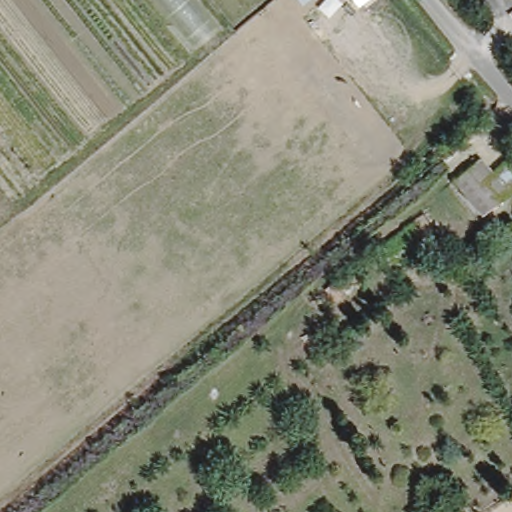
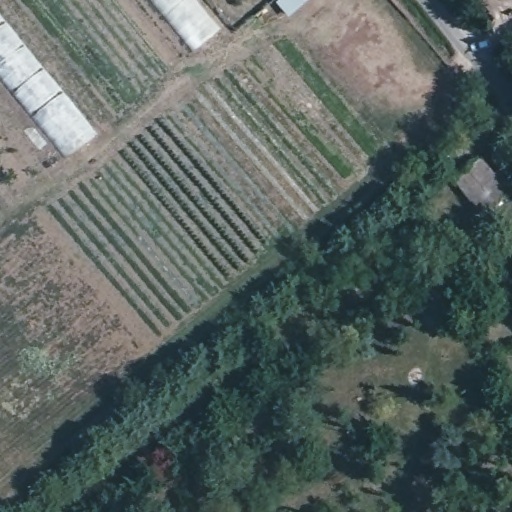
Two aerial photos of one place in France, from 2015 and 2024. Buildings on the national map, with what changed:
new [(196,50),(154,0),(192,0),(218,32),(196,50)]
new [(65,156),(0,78),(0,18),(94,134),(65,156)]
unchanged [(452,181),(475,161),(504,195),(482,215),(452,181)]
unchanged [(355,291),(338,304),(324,286),(342,273),(355,291)]

